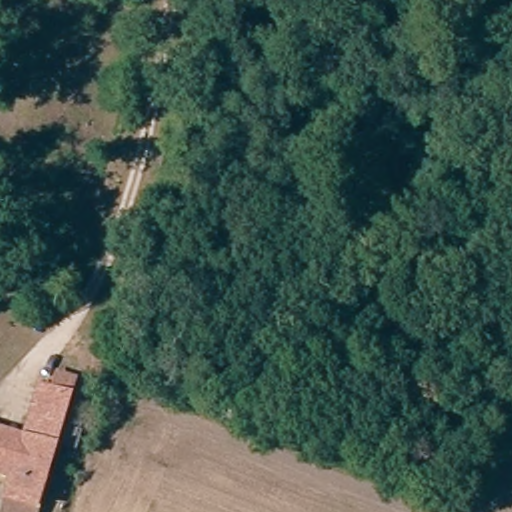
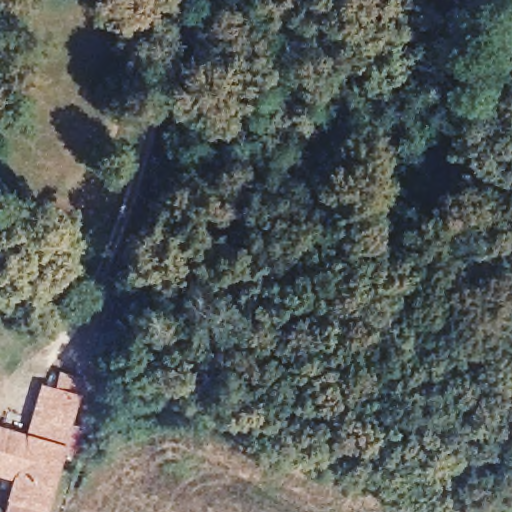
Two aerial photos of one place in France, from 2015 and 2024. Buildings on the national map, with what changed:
unchanged [(44,512),(7,512),(17,478),(28,435),(41,388),(49,389),(56,369),(81,376),(44,512)]
unchanged [(17,478),(0,472),(0,426),(28,435),(17,478)]

